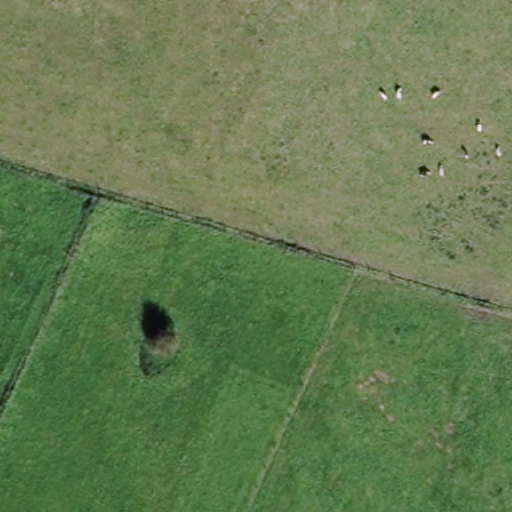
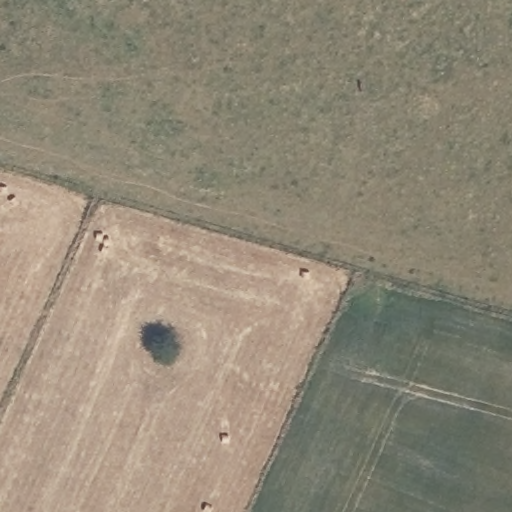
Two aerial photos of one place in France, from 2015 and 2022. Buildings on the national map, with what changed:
[]

